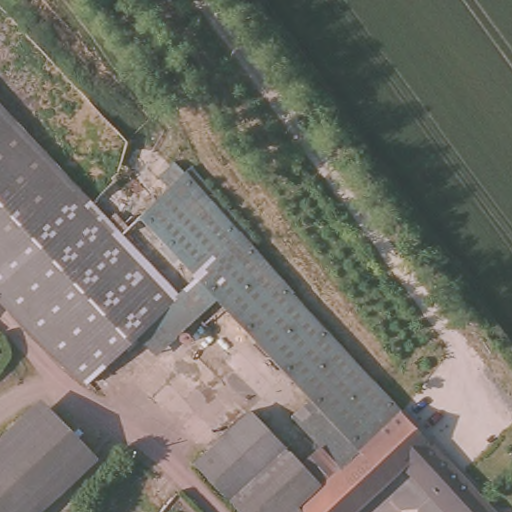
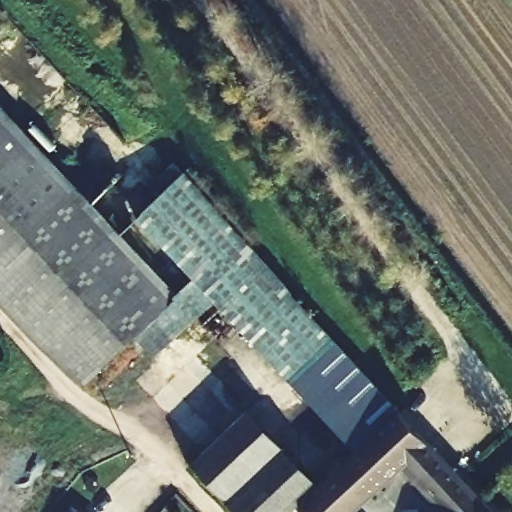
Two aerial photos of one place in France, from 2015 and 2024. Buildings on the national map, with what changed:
unchanged [(0,285),(0,74),(144,223),(187,183),(294,294),(254,339),(200,283),(96,382),(0,285)]
unchanged [(302,303),(381,381),(407,410),(420,424),(436,441),(411,468),(374,503),(345,471),(297,419),(314,403),(254,339),(294,294),(302,303)]
demolished [(103,463),(51,512),(0,512),(0,437),(40,399),(103,463)]
unchanged [(191,471),(222,441),(252,413),(324,488),(347,512),(235,512),(191,471)]
unchanged [(411,468),(436,441),(499,507),(504,512),(454,512),(411,468)]
unchanged [(374,503),(362,512),(347,512),(324,488),(345,471),(374,503)]

